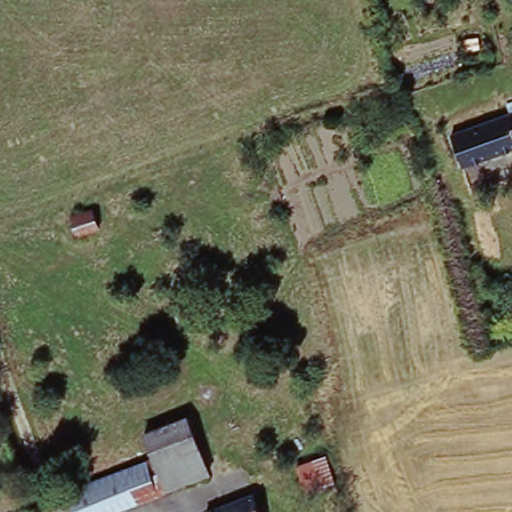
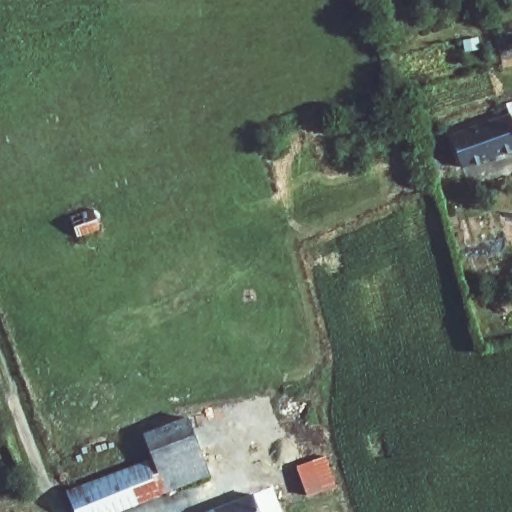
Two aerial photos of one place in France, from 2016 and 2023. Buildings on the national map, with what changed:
unchanged [(457,136),(512,119),(512,156),(470,171),(457,136)]
unchanged [(100,214),(106,232),(85,241),(80,221),(100,214)]
unchanged [(186,301),(193,318),(177,325),(170,307),(186,301)]
unchanged [(175,495),(160,459),(151,436),(195,418),(219,477),(175,495)]
unchanged [(130,471),(160,459),(175,495),(144,507),(130,471)]
unchanged [(301,468),(332,460),(342,490),(312,500),(301,468)]
unchanged [(144,507),(132,512),(78,512),(72,495),(75,493),(130,471),(144,507)]
unchanged [(271,512),(223,512),(263,495),(271,512)]

